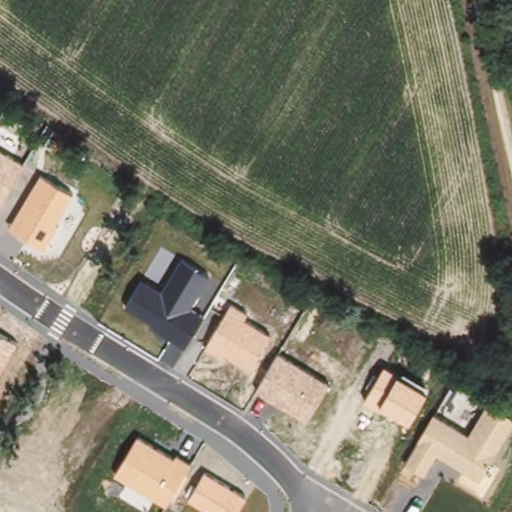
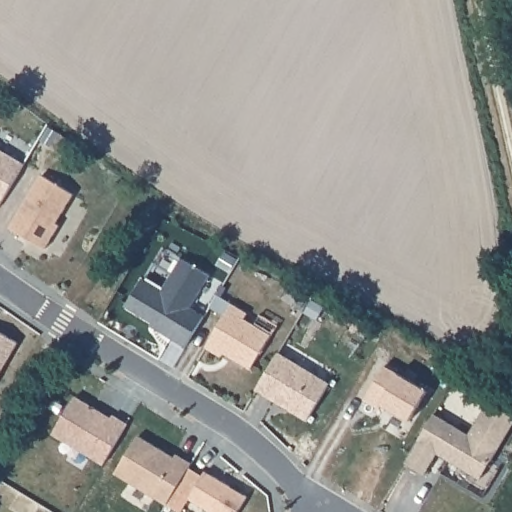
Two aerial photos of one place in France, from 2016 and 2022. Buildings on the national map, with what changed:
unchanged [(27,160),(0,205),(0,146),(27,160)]
unchanged [(41,173),(72,192),(54,222),(59,225),(45,248),(9,226),(41,173)]
unchanged [(122,308),(141,275),(161,287),(179,255),(212,272),(191,306),(205,313),(185,348),(122,308)]
unchanged [(232,303),(250,312),(246,320),(270,334),(251,366),(225,351),(221,357),(206,348),(232,303)]
unchanged [(18,341),(0,371),(0,331),(18,341)]
unchanged [(280,352),(331,380),(305,418),(257,387),(280,352)]
unchanged [(386,364),(398,371),(428,387),(407,420),(381,404),(377,410),(364,401),(386,364)]
new [(52,435),(76,395),(111,416),(113,413),(129,423),(103,465),(52,435)]
unchanged [(436,453),(424,475),(404,465),(435,414),(469,433),(487,400),(512,415),(512,426),(482,480),(436,453)]
unchanged [(116,474),(139,437),(172,460),(177,455),(192,464),(166,503),(116,474)]
unchanged [(206,471),(246,495),(236,512),(208,512),(187,500),(206,471)]

